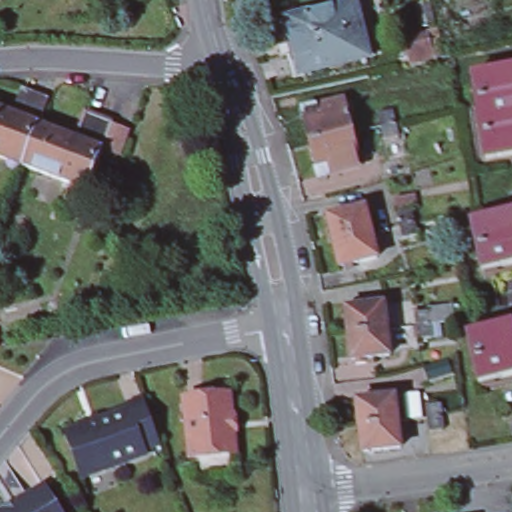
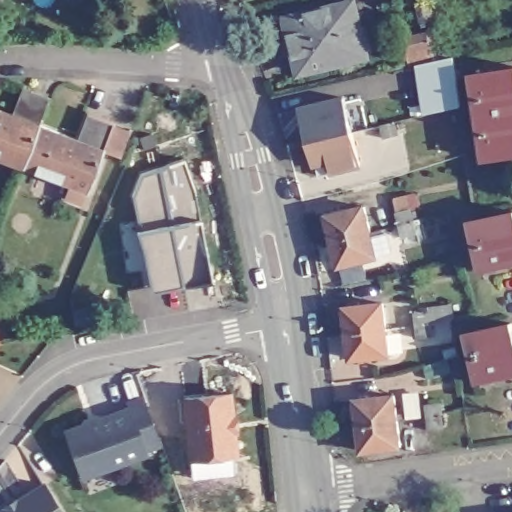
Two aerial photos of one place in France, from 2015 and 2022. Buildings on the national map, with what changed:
unchanged [(292,75),(278,16),(289,14),(290,16),(352,1),(365,55),(302,69),(303,72),(292,75)]
unchanged [(512,65),(512,152),(482,157),(467,73),(512,65)]
unchanged [(89,135),(95,120),(112,126),(101,155),(85,197),(20,171),(0,164),(0,115),(19,122),(30,95),(45,100),(49,101),(37,130),(74,144),(79,131),(89,135)]
unchanged [(352,132),(310,142),(304,119),(301,109),(316,105),(344,99),(352,132)]
unchanged [(385,138),(382,125),(379,112),(392,110),(395,122),(399,135),(385,138)]
unchanged [(352,132),(360,165),(332,172),(330,161),(315,165),(310,142),(352,132)]
new [(141,232),(135,194),(145,174),(185,163),(195,190),(200,221),(212,277),(152,290),(141,232)]
unchanged [(340,265),(334,240),(327,215),(365,205),(371,231),(377,255),(340,265)]
unchanged [(410,209),(417,235),(404,238),(397,212),(410,209)]
unchanged [(512,214),(512,267),(485,273),(472,222),(512,214)]
unchanged [(352,357),(349,332),(345,306),(382,302),(386,328),(389,353),(352,357)]
unchanged [(417,337),(416,325),(414,311),(428,310),(430,323),(431,335),(417,337)]
unchanged [(510,325),(512,335),(512,376),(477,385),(464,336),(510,325)]
unchanged [(363,451),(360,426),(357,400),(395,395),(397,420),(400,446),(363,451)]
unchanged [(80,421),(95,415),(97,419),(127,408),(125,403),(143,397),(159,441),(143,446),(145,451),(82,474),(65,431),(82,425),(80,421)]
unchanged [(229,397),(235,457),(195,460),(190,461),(185,401),(229,397)]
unchanged [(428,431),(427,416),(425,405),(439,403),(440,413),(442,430),(428,431)]
unchanged [(0,510),(5,506),(5,505),(14,498),(15,500),(42,483),(61,512),(0,512),(0,510)]

